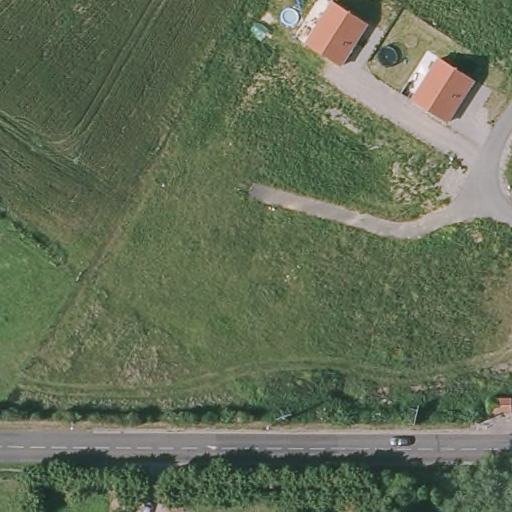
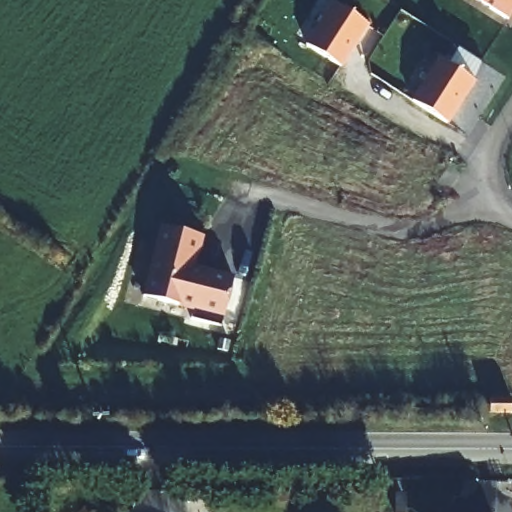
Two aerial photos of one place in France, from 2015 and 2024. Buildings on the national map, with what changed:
new [(475,0),(512,0),(512,13),(507,21),(475,0)]
unchanged [(370,26),(341,66),(305,43),(332,1),(370,26)]
unchanged [(476,83),(448,124),(411,100),(439,58),(476,83)]
new [(235,278),(221,325),(192,317),(195,309),(142,295),(162,227),(202,237),(198,255),(195,255),(192,267),(235,278)]
new [(491,404),(512,404),(512,418),(491,418),(491,404)]

